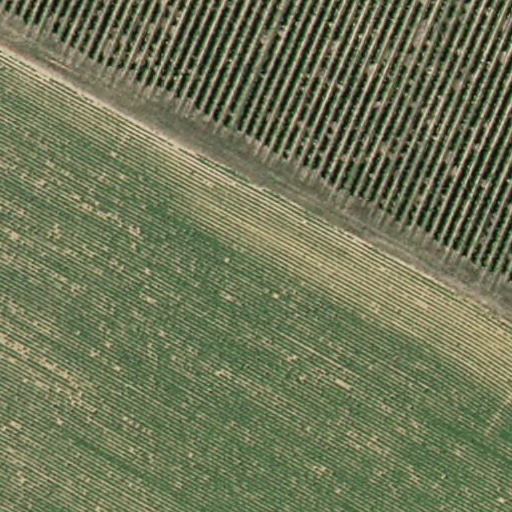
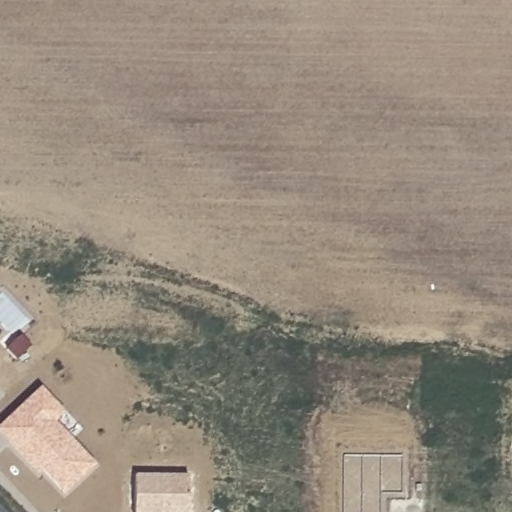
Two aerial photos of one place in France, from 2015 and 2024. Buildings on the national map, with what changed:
new [(41,471),(37,475),(0,434),(0,425),(40,387),(65,414),(57,420),(95,465),(64,496),(41,471)]
new [(380,492),(379,512),(343,512),(343,454),(401,455),(401,492),(380,492)]
new [(134,512),(134,475),(188,475),(188,512),(134,512)]

